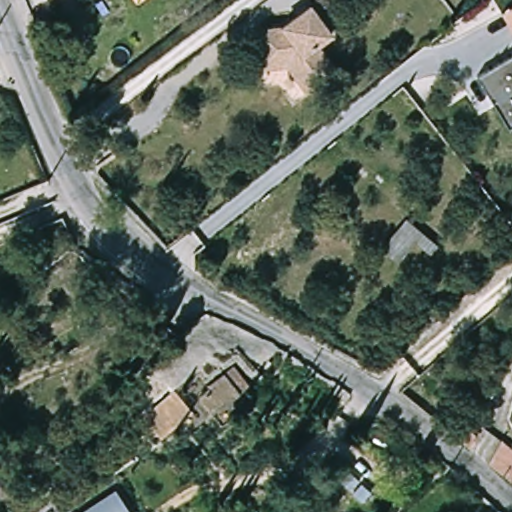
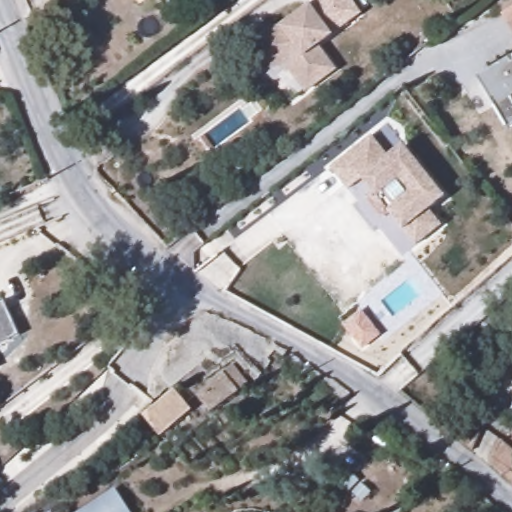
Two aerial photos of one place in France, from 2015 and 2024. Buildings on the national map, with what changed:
unchanged [(287,66),(259,68),(255,27),(279,25),(310,2),(334,34),(320,45),(337,67),(307,91),(287,66)]
unchanged [(512,10),(512,16),(510,12),(512,10)]
unchanged [(477,79),(512,57),(512,126),(507,130),(477,79)]
new [(403,231),(389,214),(383,219),(367,199),(373,194),(364,181),(345,191),(328,170),(371,135),(390,153),(403,144),(446,197),(430,211),(441,226),(416,247),(403,231)]
demolished [(409,216),(446,245),(435,256),(418,242),(403,260),(385,246),(409,216)]
new [(0,343),(0,305),(6,302),(20,336),(0,343)]
unchanged [(202,396),(214,387),(212,385),(238,366),(253,384),(242,392),(243,393),(215,412),(202,396)]
unchanged [(195,411),(166,432),(153,412),(181,390),(195,411)]
unchanged [(500,438),(512,447),(512,483),(486,461),(500,438)]
unchanged [(136,510),(132,512),(85,512),(122,488),(136,510)]

